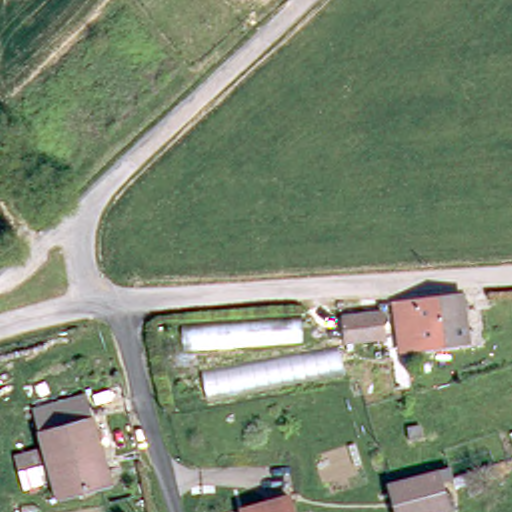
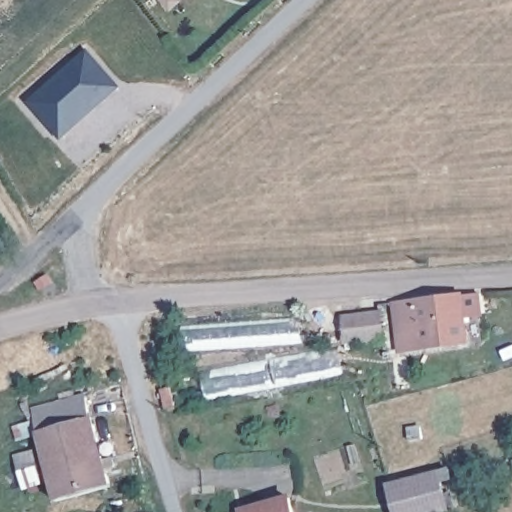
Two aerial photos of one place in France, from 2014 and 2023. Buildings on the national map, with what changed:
new [(122,86),(62,139),(29,102),(87,49),(122,86)]
unchanged [(400,302),(467,299),(471,342),(405,347),(400,302)]
unchanged [(378,316),(378,340),(345,341),(344,317),(378,316)]
unchanged [(22,490),(12,455),(41,448),(32,413),(87,399),(110,487),(55,501),(50,482),(22,490)]
unchanged [(441,472),(450,508),(435,512),(395,512),(388,484),(393,483),(441,472)]
unchanged [(286,495),(290,512),(240,512),(238,506),(286,495)]

